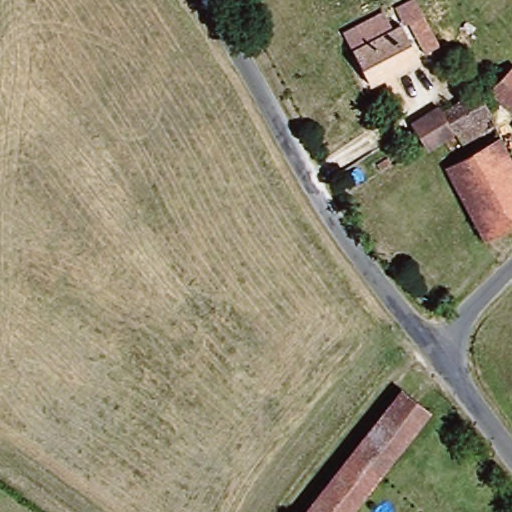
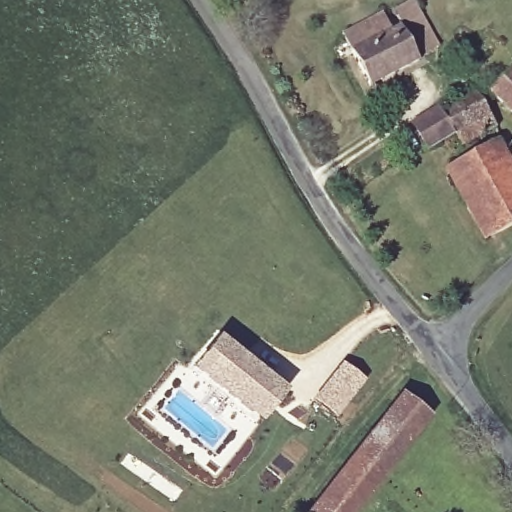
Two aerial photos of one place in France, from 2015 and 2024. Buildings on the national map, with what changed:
unchanged [(400,31),(418,63),(373,89),(355,55),(400,31)]
unchanged [(511,74),(512,75),(512,120),(488,98),(511,74)]
unchanged [(457,150),(450,137),(425,152),(408,123),(435,109),(438,115),(476,95),(486,115),(493,128),(457,150)]
unchanged [(512,227),(486,241),(448,169),(501,143),(512,164),(512,227)]
new [(191,365),(218,333),(285,389),(257,419),(191,365)]
new [(341,361),(365,379),(335,417),(313,397),(341,361)]
unchanged [(308,512),(371,428),(400,395),(426,416),(350,512),(308,512)]

